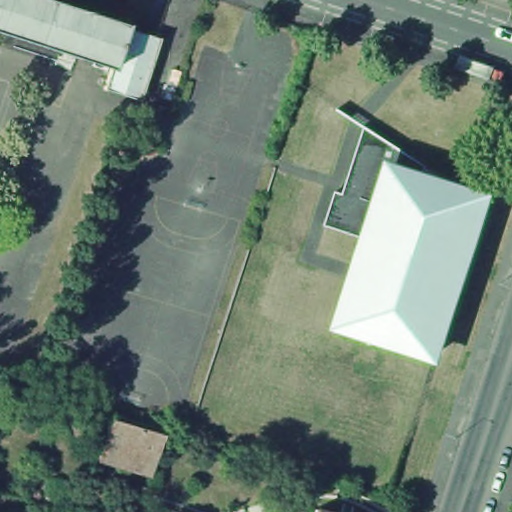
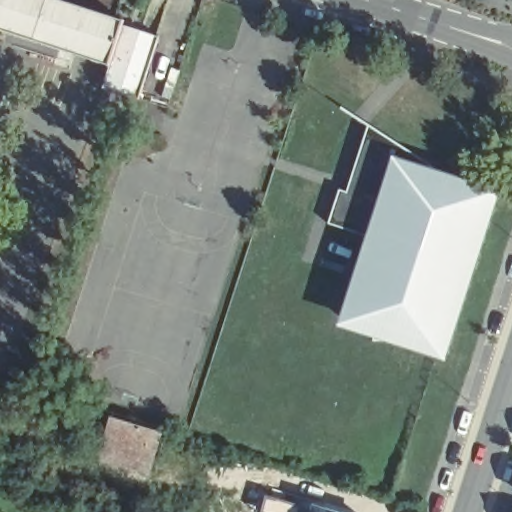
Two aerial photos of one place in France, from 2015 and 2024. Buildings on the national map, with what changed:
unchanged [(101,65),(68,55),(64,66),(44,59),(47,48),(0,33),(0,0),(51,0),(115,21),(114,25),(132,31),(144,35),(151,37),(130,101),(124,99),(94,89),(95,86),(87,83),(91,76),(97,79),(101,65)]
unchanged [(391,170),(368,243),(323,228),(334,194),(341,196),(363,131),(397,153),(391,170)]
unchanged [(436,356),(408,347),(408,348),(368,346),(368,335),(341,326),(368,243),(391,170),(397,153),(458,191),(486,200),(436,356)]
unchanged [(88,458),(93,443),(101,416),(152,431),(144,458),(139,473),(88,458)]
new [(266,493),(301,505),(299,512),(261,512),(266,493)]
unchanged [(316,512),(306,512),(307,509),(316,512)]

